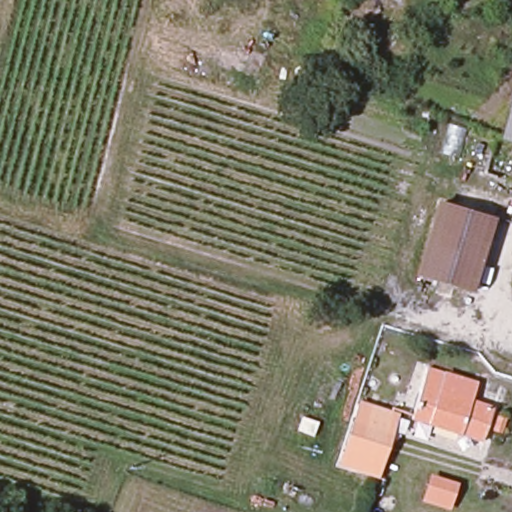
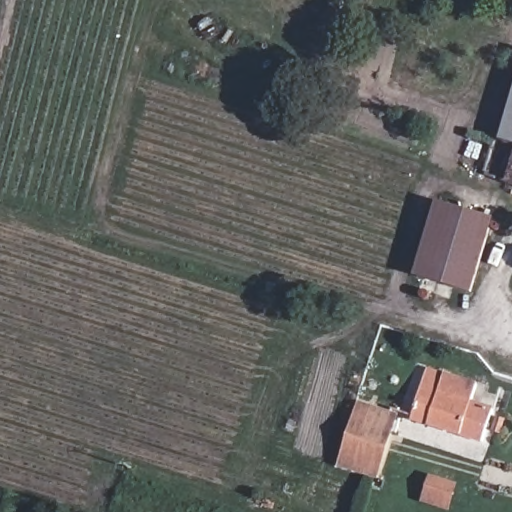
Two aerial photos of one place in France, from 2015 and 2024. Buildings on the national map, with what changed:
unchanged [(508,107),(512,98),(512,149),(492,144),(508,107)]
unchanged [(512,157),(512,190),(502,187),(512,157)]
unchanged [(438,210),(491,227),(470,283),(465,297),(413,281),(417,267),(418,267),(438,210)]
unchanged [(336,462),(357,403),(374,409),(389,414),(391,407),(412,414),(426,372),(476,389),(470,406),(478,408),(491,412),(480,445),(470,442),(410,421),(400,417),(379,477),(374,475),(354,467),(349,466),(336,462)]
unchanged [(458,486),(451,512),(446,512),(422,504),(431,477),(458,486)]

